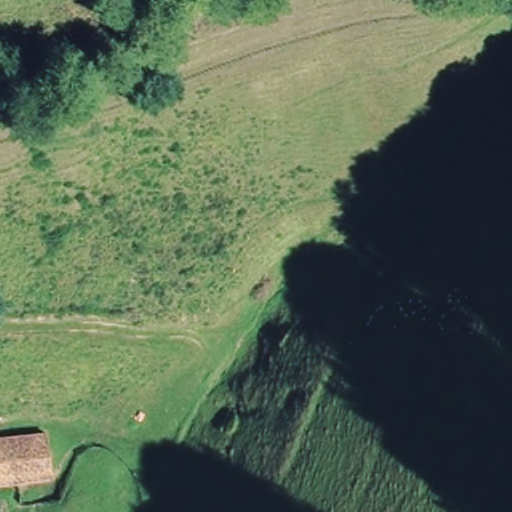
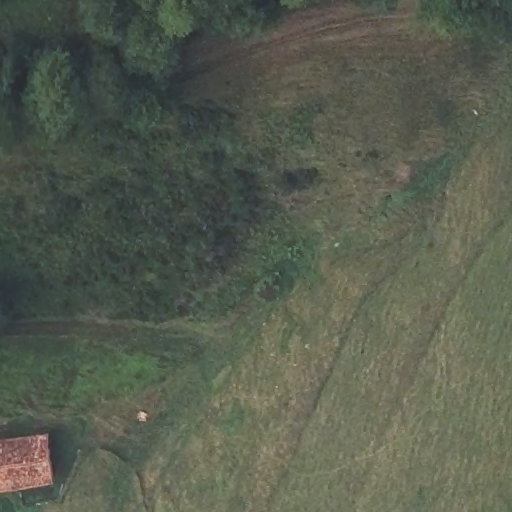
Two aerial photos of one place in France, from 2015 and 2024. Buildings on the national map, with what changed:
unchanged [(2,487),(0,474),(0,446),(51,432),(58,474),(2,487)]

